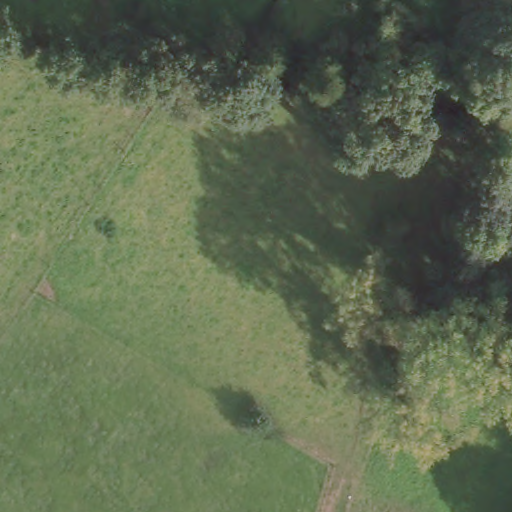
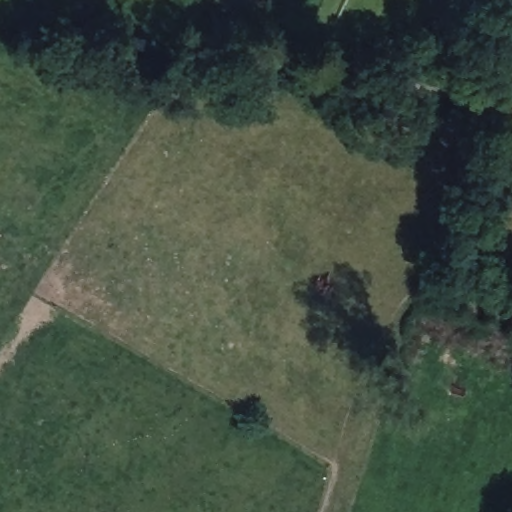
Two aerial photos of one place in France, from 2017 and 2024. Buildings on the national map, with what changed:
[]

